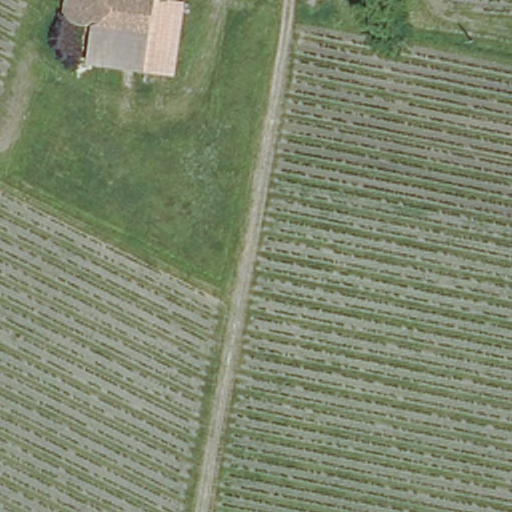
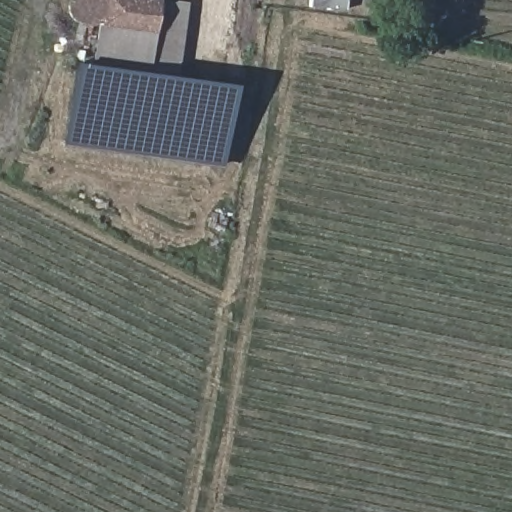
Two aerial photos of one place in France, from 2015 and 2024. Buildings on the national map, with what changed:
unchanged [(99,36),(100,23),(92,25),(80,25),(71,17),(69,8),(72,0),(159,0),(155,44),(99,36)]
unchanged [(181,77),(93,65),(99,36),(155,44),(159,0),(172,0),(191,1),(181,77)]
new [(235,85),(222,166),(63,145),(81,63),(93,65),(181,77),(235,85)]

